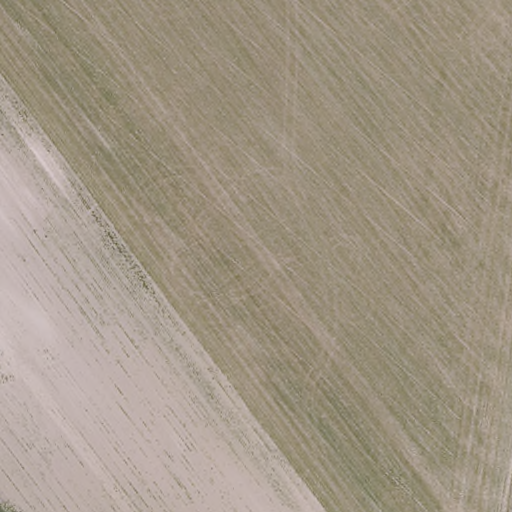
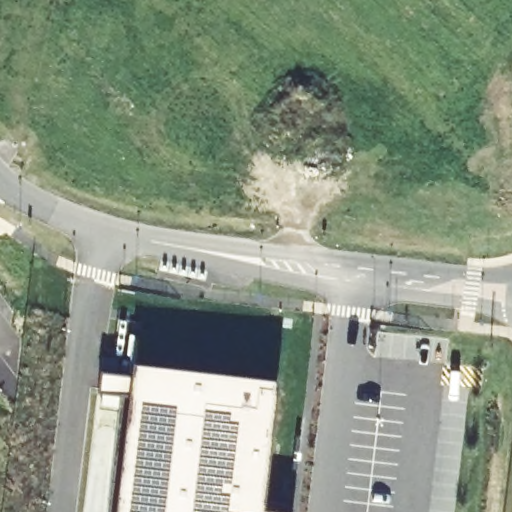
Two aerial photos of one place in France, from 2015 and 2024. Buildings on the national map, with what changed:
new [(98,393),(100,371),(135,375),(136,364),(277,381),(262,512),(119,512),(132,397),(98,393)]

